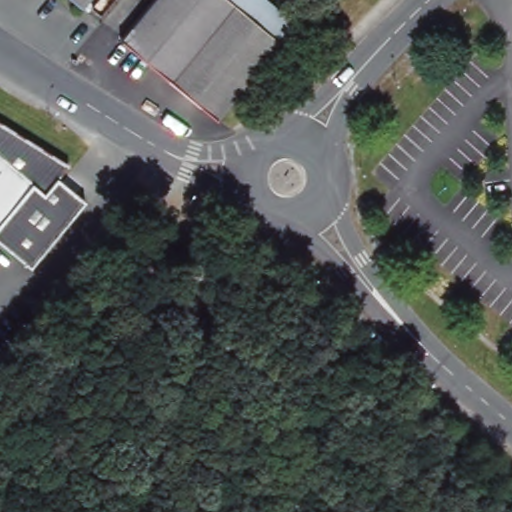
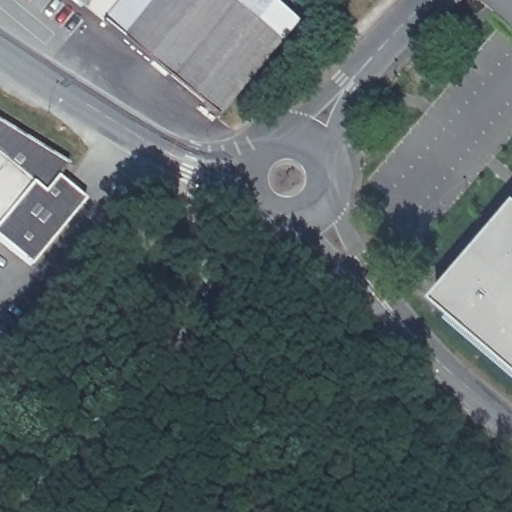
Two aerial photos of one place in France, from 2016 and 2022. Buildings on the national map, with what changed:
unchanged [(85,7),(77,0),(90,0),(85,7)]
unchanged [(280,41),(217,118),(121,40),(153,0),(230,0),(280,41)]
unchanged [(294,22),(280,41),(230,0),(267,0),(294,22)]
unchanged [(58,178),(85,201),(30,267),(0,242),(0,122),(69,165),(58,178)]
new [(437,294),(512,205),(512,357),(437,294)]

